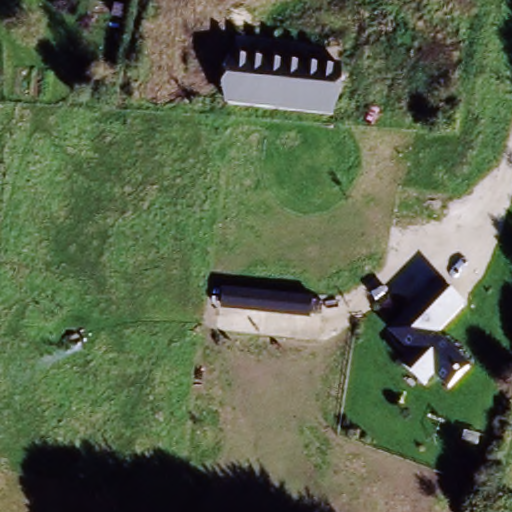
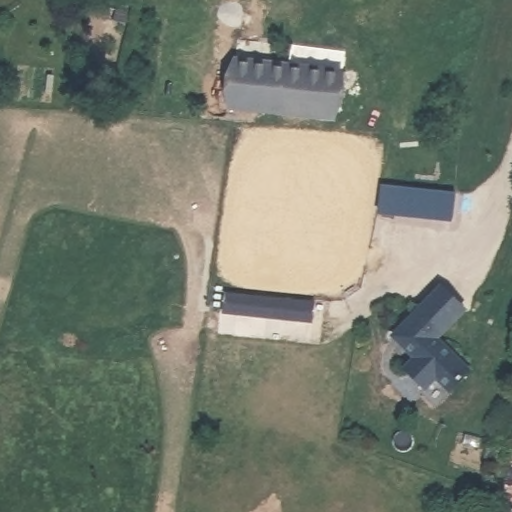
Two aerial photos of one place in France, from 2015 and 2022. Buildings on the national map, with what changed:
unchanged [(335,118),(234,102),(240,48),(350,61),(335,118)]
new [(455,192),(453,220),(378,214),(382,184),(455,192)]
unchanged [(434,382),(425,390),(402,370),(412,358),(391,338),(439,286),(468,310),(442,339),(474,370),(450,396),(434,382)]
unchanged [(312,323),(222,314),(225,293),(314,301),(312,323)]

